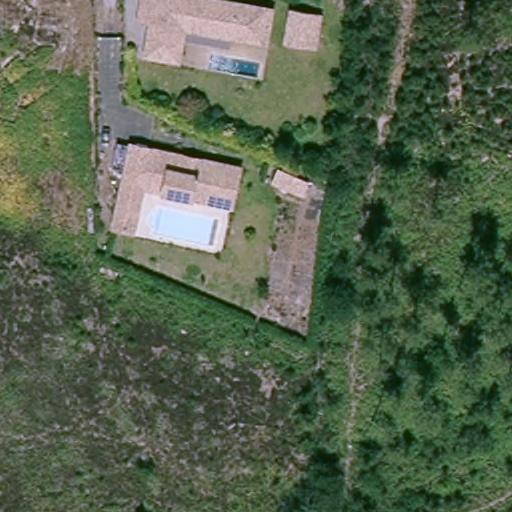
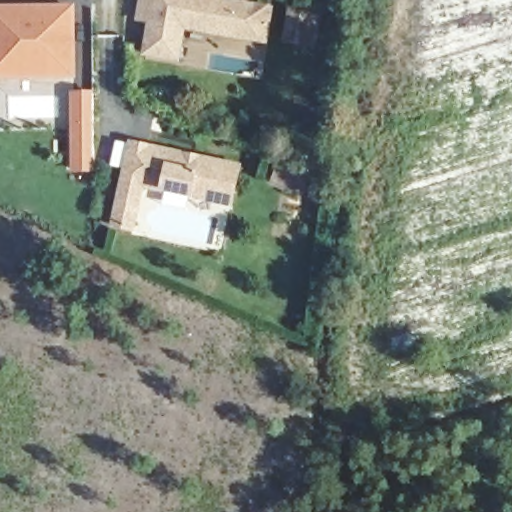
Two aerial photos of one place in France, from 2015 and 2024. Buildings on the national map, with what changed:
unchanged [(155,19),(142,16),(145,0),(233,0),(271,7),(265,40),(187,25),(181,58),(149,51),(155,19)]
new [(78,78),(0,78),(0,5),(75,4),(78,78)]
unchanged [(322,16),(317,41),(290,36),(295,11),(322,16)]
new [(96,172),(71,172),(71,90),(94,90),(96,172)]
unchanged [(111,228),(118,195),(128,146),(236,168),(228,207),(140,188),(137,199),(130,232),(111,228)]
unchanged [(303,175),(318,182),(312,196),(284,184),(290,170),(303,175)]

